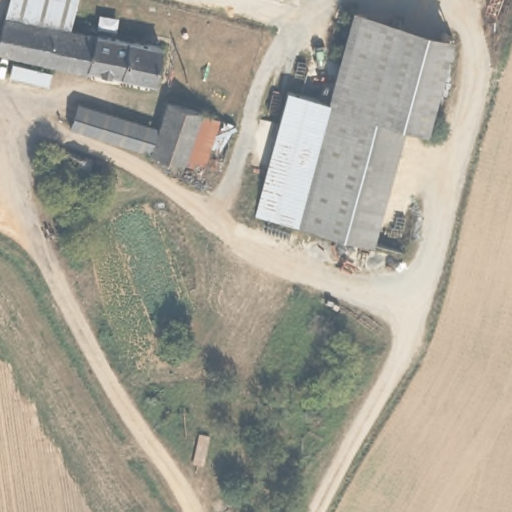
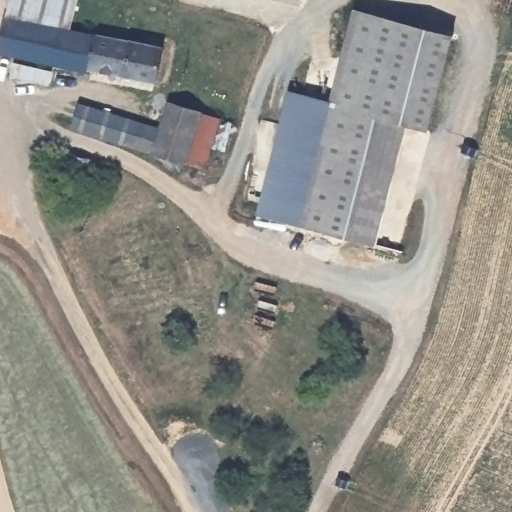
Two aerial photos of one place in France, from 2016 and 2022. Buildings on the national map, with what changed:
unchanged [(72,26),(167,43),(156,85),(0,53),(0,47),(11,0),(79,0),(72,26)]
unchanged [(349,12),(361,15),(448,35),(426,129),(404,124),(382,223),(376,247),(330,237),(298,229),(317,151),(327,106),(349,12)]
unchanged [(327,106),(317,151),(298,229),(256,220),(275,139),(285,96),(327,106)]
unchanged [(164,155),(88,130),(95,105),(174,131),(164,155)]
unchanged [(184,105),(236,127),(215,176),(164,155),(174,131),(184,105)]

